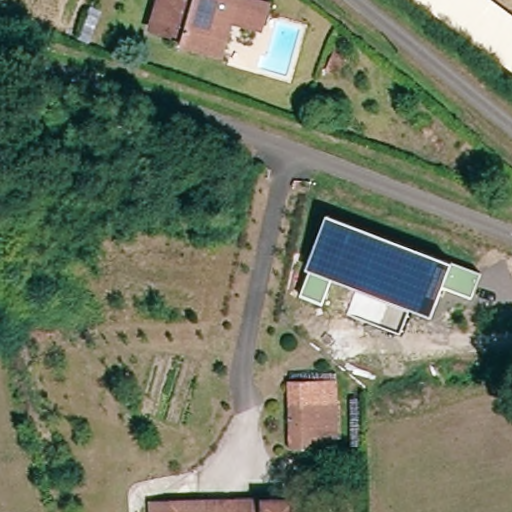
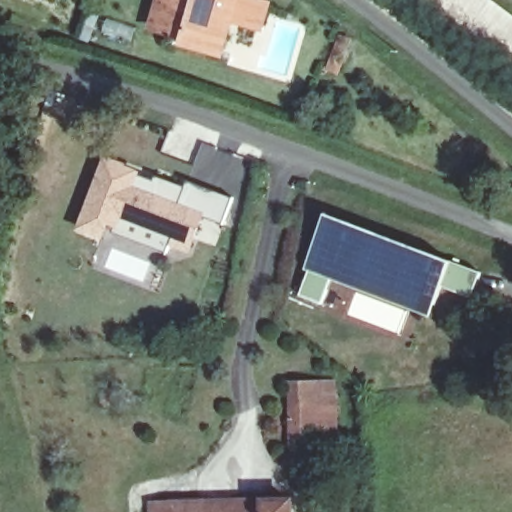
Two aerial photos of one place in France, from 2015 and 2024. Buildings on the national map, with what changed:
unchanged [(209,50),(180,41),(180,35),(150,26),(158,0),(253,0),(260,2),(253,27),(227,19),(218,52),(209,50)]
new [(169,246),(166,251),(107,230),(104,241),(75,232),(106,154),(144,169),(140,177),(155,182),(157,177),(186,188),(190,181),(231,199),(223,224),(205,217),(190,255),(169,246)]
unchanged [(310,271),(305,268),(326,216),(451,261),(483,272),(474,299),(445,286),(433,316),(332,277),(322,302),(300,296),(310,271)]
unchanged [(336,402),(336,447),(292,447),(291,404),(336,402)]
unchanged [(292,499),(293,512),(153,512),(153,503),(250,500),(292,499)]

